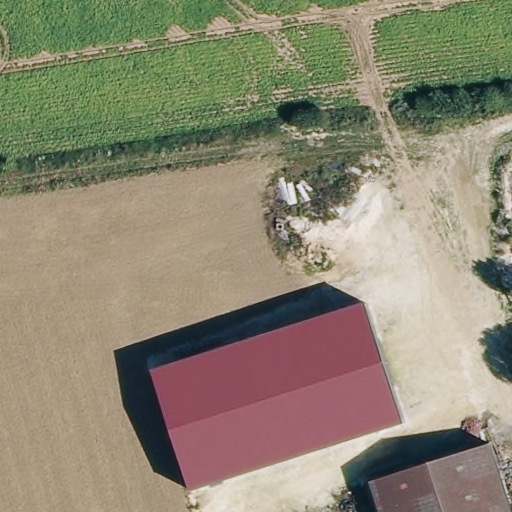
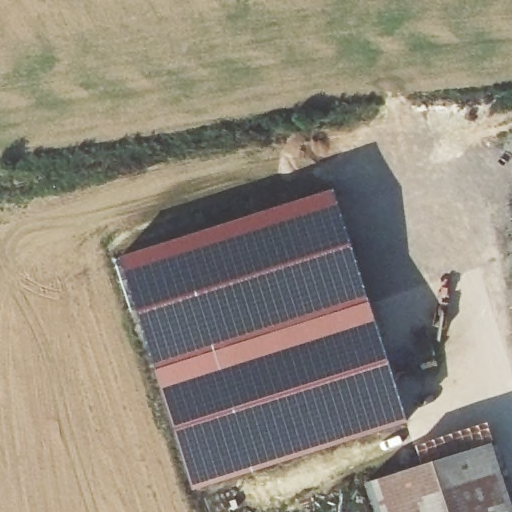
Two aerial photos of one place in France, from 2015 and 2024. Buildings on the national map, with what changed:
new [(367,302),(155,371),(116,258),(331,191),(367,302)]
unchanged [(367,302),(406,422),(194,491),(155,371),(367,302)]
unchanged [(373,484),(494,448),(512,506),(512,512),(382,512),(373,484)]

